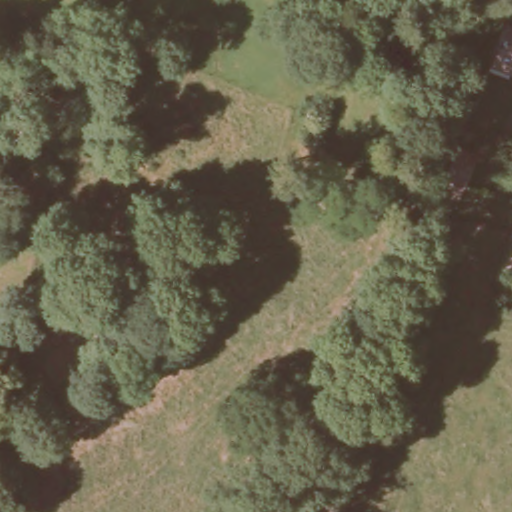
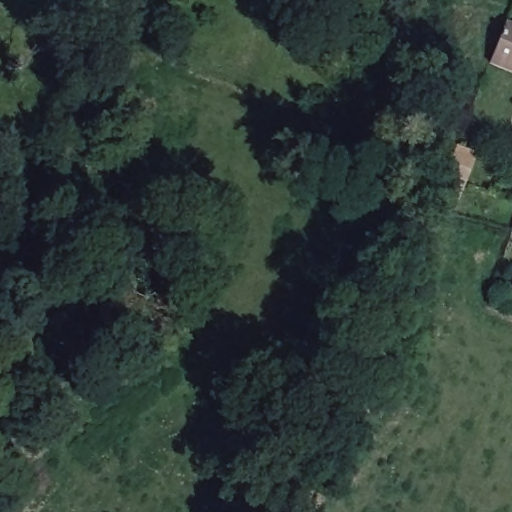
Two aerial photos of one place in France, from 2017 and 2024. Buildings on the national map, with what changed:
unchanged [(504,23),(512,26),(512,71),(488,61),(504,23)]
unchanged [(110,44),(103,66),(91,62),(99,40),(110,44)]
unchanged [(459,196),(441,191),(458,146),(478,155),(459,196)]

